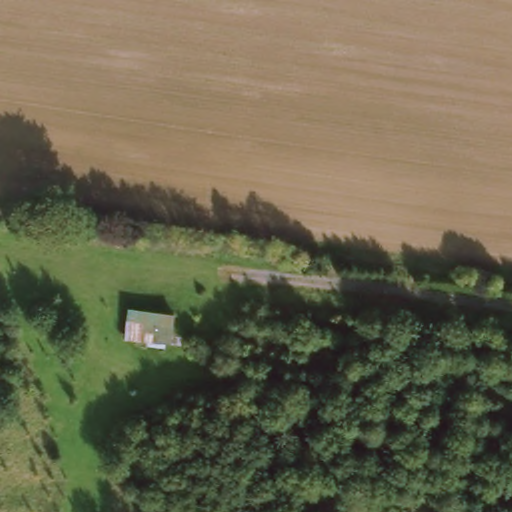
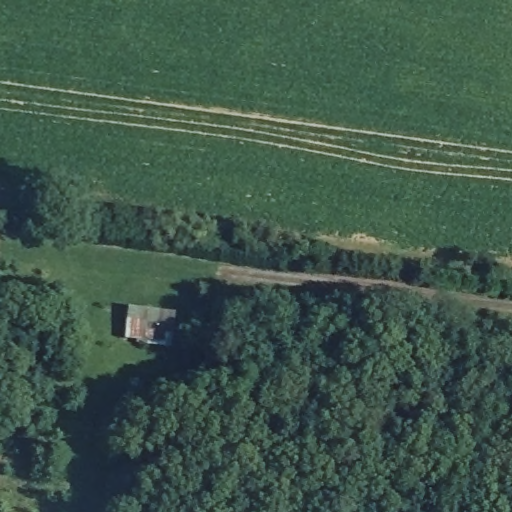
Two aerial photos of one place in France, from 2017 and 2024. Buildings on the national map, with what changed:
unchanged [(178,310),(173,345),(139,341),(141,335),(128,333),(131,305),(178,310)]

